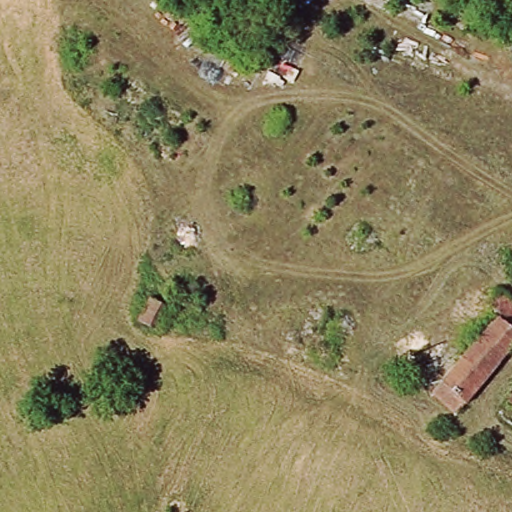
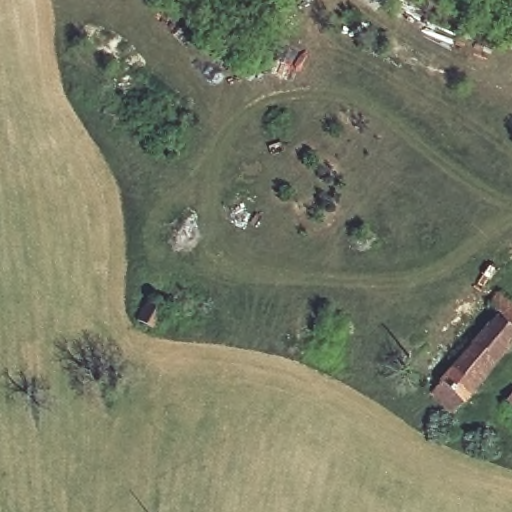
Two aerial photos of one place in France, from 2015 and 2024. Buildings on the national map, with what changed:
unchanged [(507,283),(512,278),(512,288),(507,283)]
unchanged [(432,396),(442,382),(432,374),(447,357),(457,365),(465,354),(457,346),(488,310),(502,294),(512,303),(512,349),(455,415),(432,396)]
unchanged [(140,322),(155,300),(173,312),(159,334),(140,322)]

